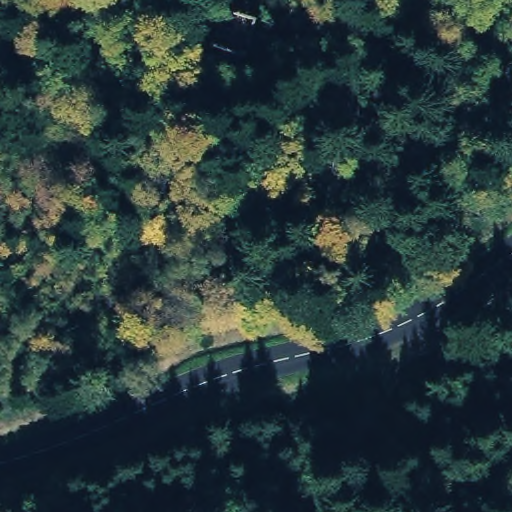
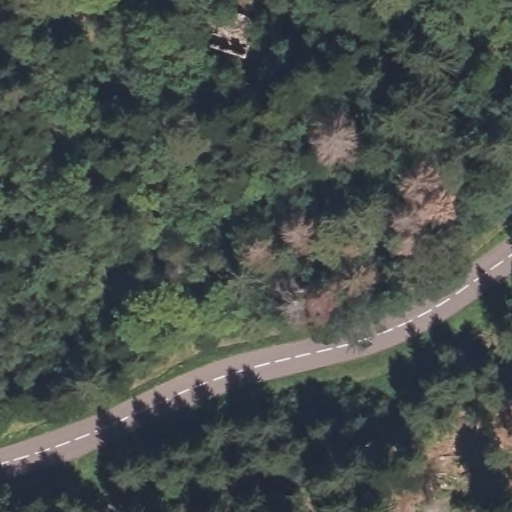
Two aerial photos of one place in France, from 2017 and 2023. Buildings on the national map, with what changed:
unchanged [(259,29),(248,68),(213,58),(230,18),(259,29)]

